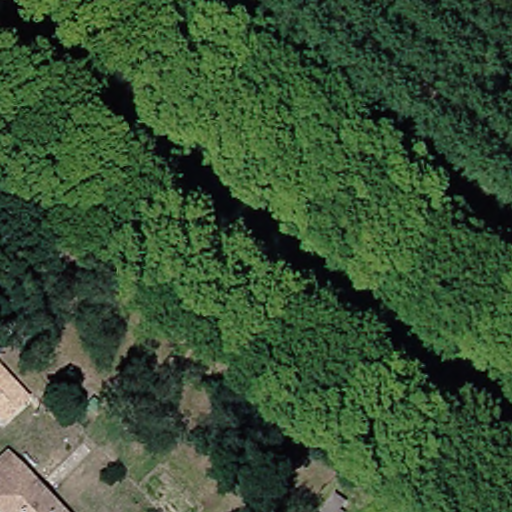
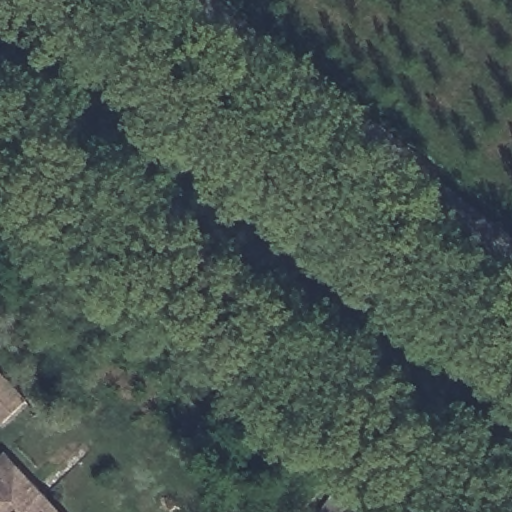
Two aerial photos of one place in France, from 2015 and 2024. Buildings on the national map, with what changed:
unchanged [(0,411),(0,374),(18,393),(0,411)]
unchanged [(14,464),(54,512),(0,512),(0,452),(3,450),(14,464)]

